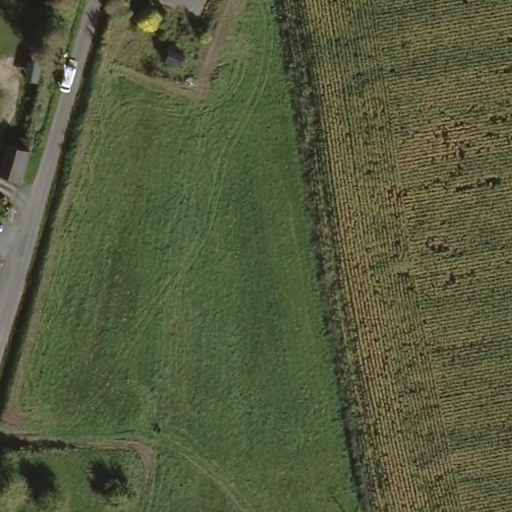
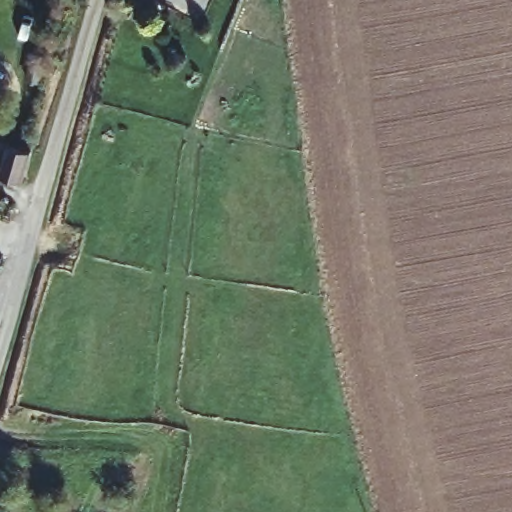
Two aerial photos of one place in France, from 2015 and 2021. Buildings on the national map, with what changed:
unchanged [(4,144),(24,148),(26,149),(18,181),(0,175),(0,160),(4,144)]

